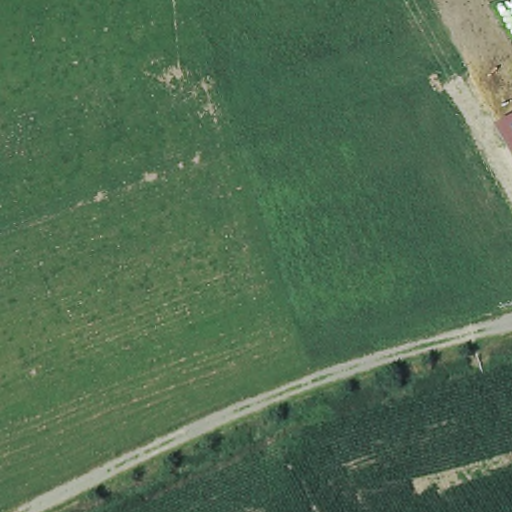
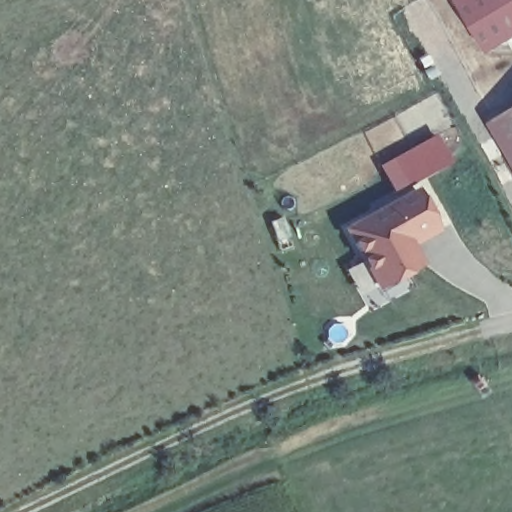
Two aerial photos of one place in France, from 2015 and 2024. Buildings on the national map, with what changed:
new [(490,52),(458,0),(512,0),(512,41),(490,52)]
unchanged [(491,121),(512,108),(512,156),(491,121)]
new [(439,132),(457,162),(396,192),(382,160),(439,132)]
new [(414,245),(422,261),(376,287),(342,226),(417,185),(442,230),(414,245)]

